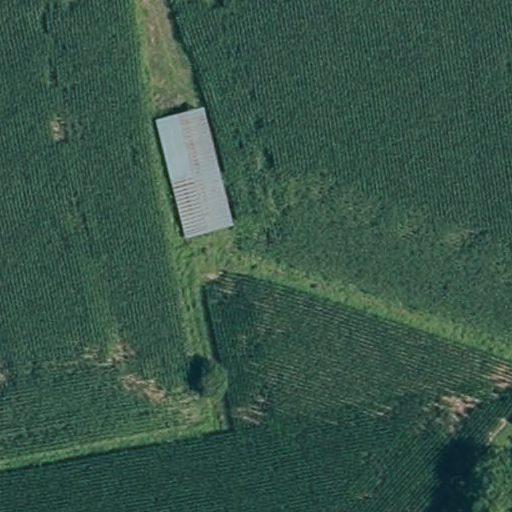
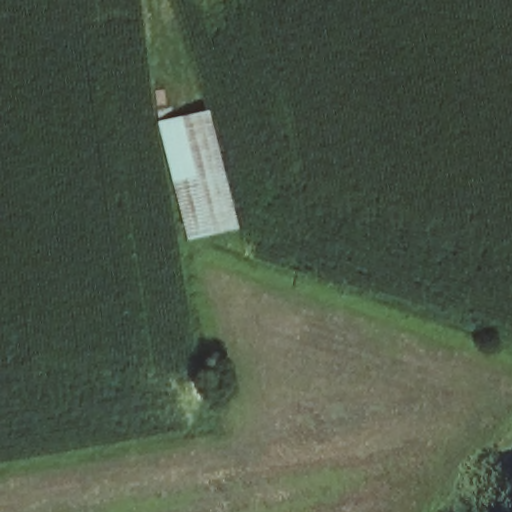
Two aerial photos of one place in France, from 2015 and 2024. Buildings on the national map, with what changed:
unchanged [(231,227),(181,237),(157,120),(207,110),(231,227)]

